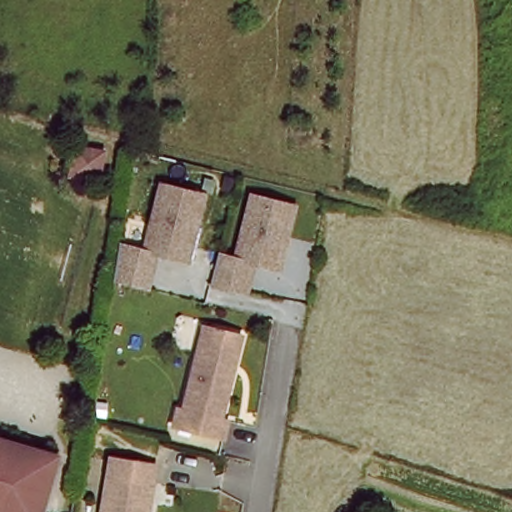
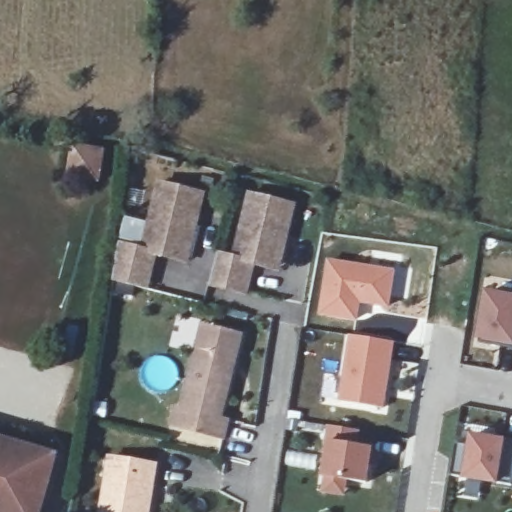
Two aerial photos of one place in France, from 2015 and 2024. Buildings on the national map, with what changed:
unchanged [(105,185),(70,182),(75,144),(109,149),(105,185)]
unchanged [(184,260),(160,256),(154,293),(120,287),(125,251),(143,253),(153,186),(203,194),(198,227),(193,261),(184,260)]
unchanged [(268,271),(252,267),(245,297),(207,287),(215,256),(234,261),(249,196),(293,206),(285,239),(277,272),(268,271)]
new [(391,308),(362,305),(358,322),(320,316),(328,260),(398,271),(391,308)]
new [(478,339),(487,292),(512,296),(512,348),(479,342),(478,339)]
unchanged [(225,420),(231,421),(227,440),(176,428),(181,410),(186,411),(200,351),(206,327),(215,329),(244,336),(225,420)]
new [(385,407),(340,401),(350,336),(395,342),(385,407)]
new [(329,446),(325,446),(328,426),(361,432),(360,447),(374,450),(368,486),(349,482),(345,497),(323,493),(327,477),(323,477),(329,446)]
new [(465,479),(451,477),(456,443),(469,446),(471,432),(507,438),(512,439),(512,485),(500,483),(465,479)]
unchanged [(57,457),(42,512),(0,512),(0,439),(57,457)]
unchanged [(158,470),(150,512),(100,512),(109,461),(158,470)]

